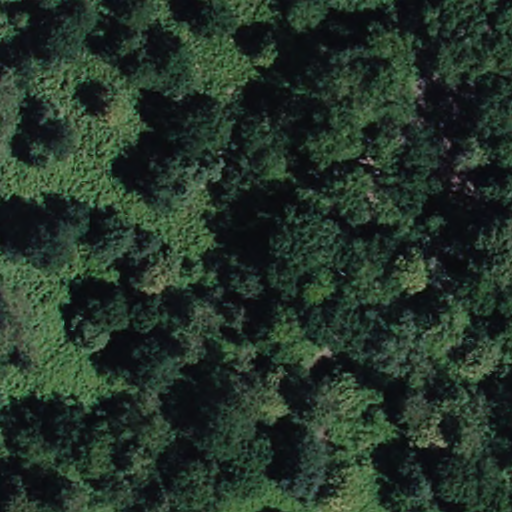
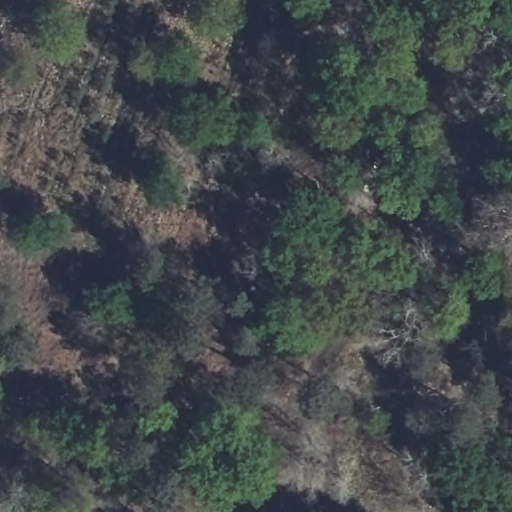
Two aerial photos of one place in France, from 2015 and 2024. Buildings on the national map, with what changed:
[]

